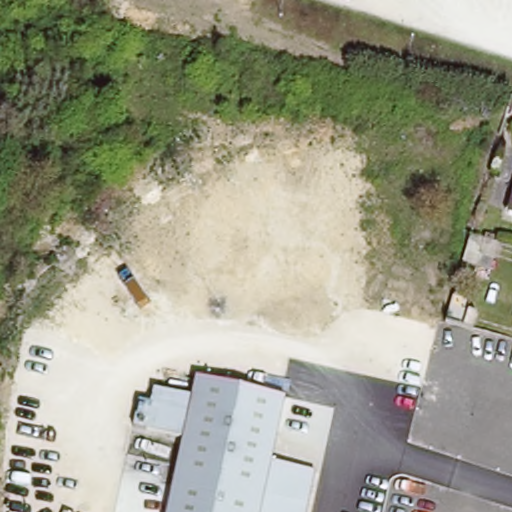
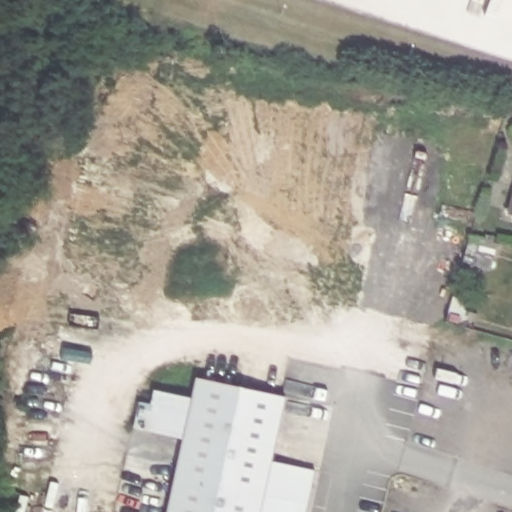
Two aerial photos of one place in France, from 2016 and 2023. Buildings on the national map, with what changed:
unchanged [(481,246),(511,254),(505,276),(489,272),(487,280),(472,276),(481,246)]
unchanged [(454,341),(464,305),(477,308),(475,324),(487,326),(483,347),(454,341)]
unchanged [(197,376),(283,397),(270,460),(313,469),(305,512),(166,512),(181,438),(145,431),(153,390),(192,396),(197,376)]

